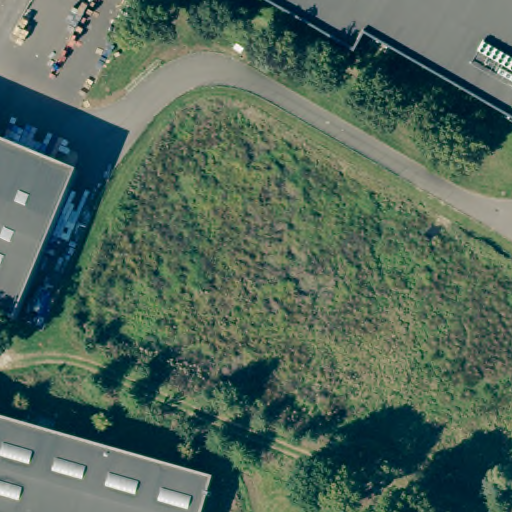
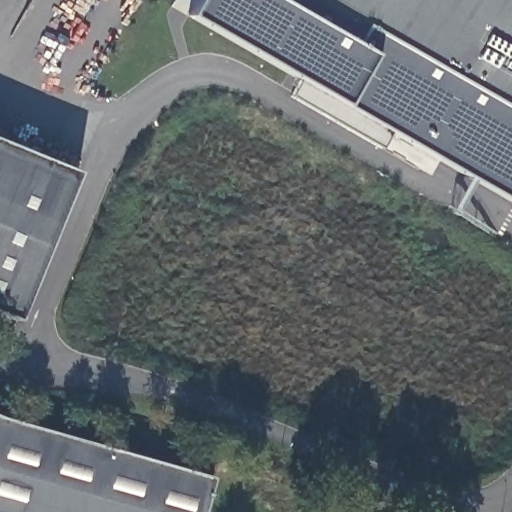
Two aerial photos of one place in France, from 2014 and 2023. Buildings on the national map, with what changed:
new [(370,20),(512,101),(512,202),(393,133),(382,149),(292,96),(302,80),(188,17),(198,0),(299,0),(360,37),(370,20)]
unchanged [(512,101),(370,20),(360,37),(299,0),(512,0),(512,101)]
unchanged [(76,174),(16,321),(0,314),(0,142),(76,174)]
unchanged [(212,479),(203,512),(0,512),(0,419),(212,479)]

